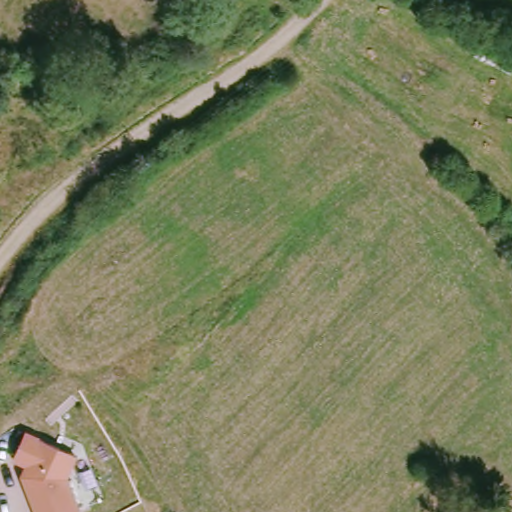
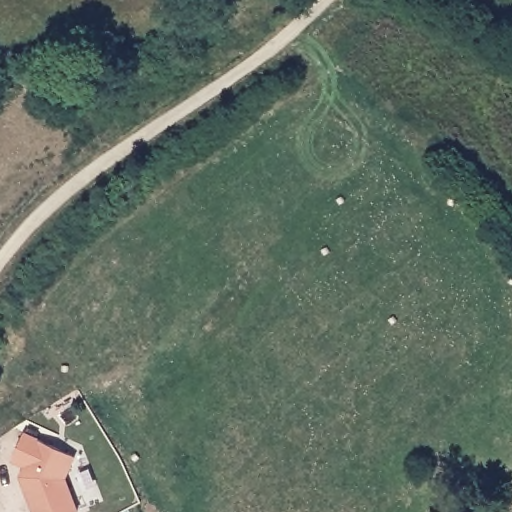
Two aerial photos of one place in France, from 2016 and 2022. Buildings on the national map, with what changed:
unchanged [(30,491),(23,472),(26,466),(12,460),(24,433),(75,456),(65,477),(78,512),(77,512),(35,512),(27,492),(30,491)]

